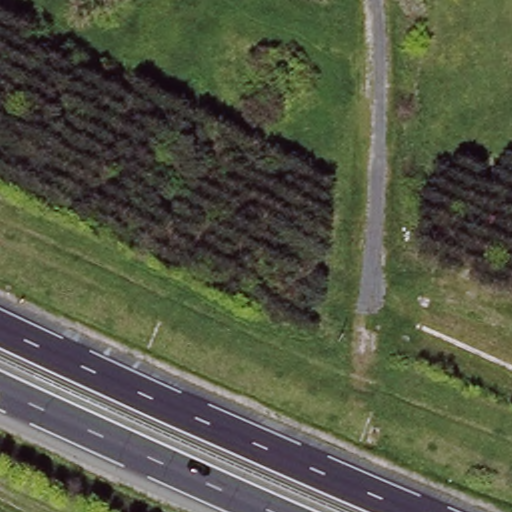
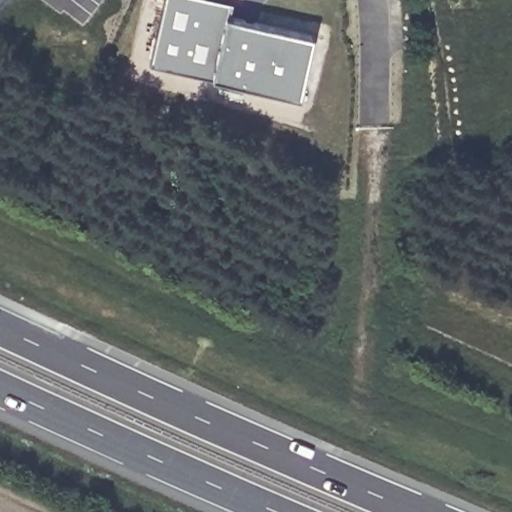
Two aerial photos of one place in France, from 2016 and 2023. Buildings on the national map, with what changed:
new [(213,78),(150,64),(165,0),(219,0),(231,2),(227,17),(314,36),(299,98),(213,78)]

